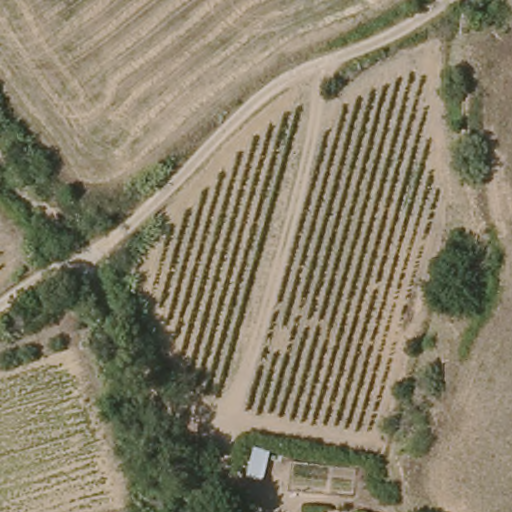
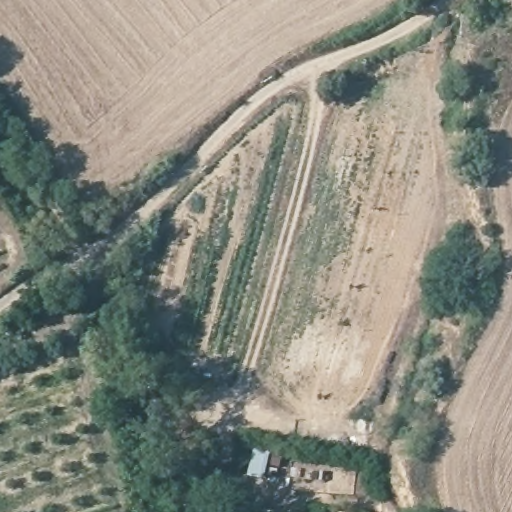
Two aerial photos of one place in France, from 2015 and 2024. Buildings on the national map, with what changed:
unchanged [(10,339),(0,319),(0,318),(16,309),(27,330),(10,339)]

